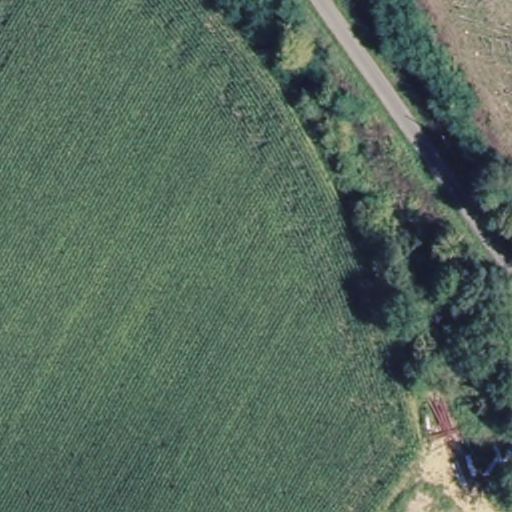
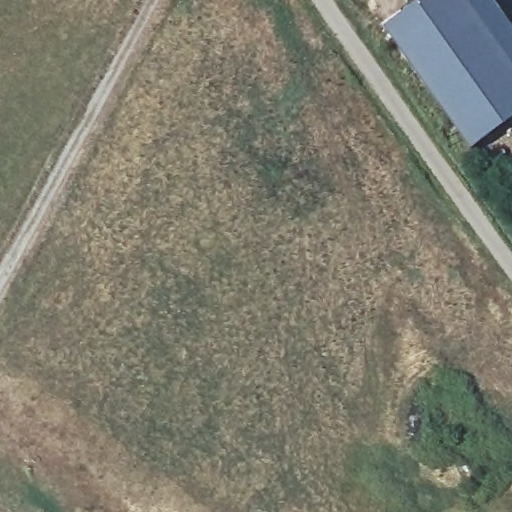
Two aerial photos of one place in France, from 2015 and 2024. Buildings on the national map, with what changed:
new [(385,29),(427,0),(465,0),(512,66),(512,122),(472,151),(385,29)]

